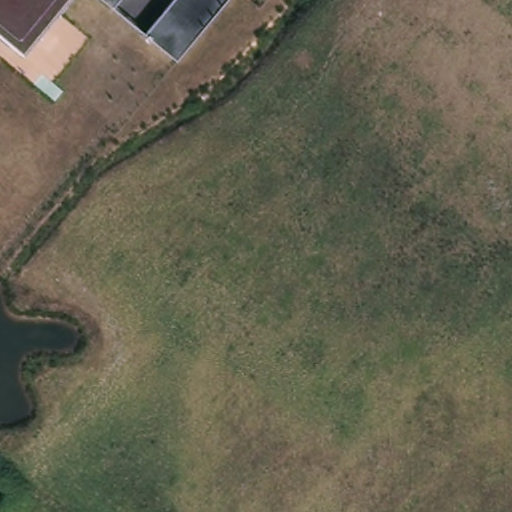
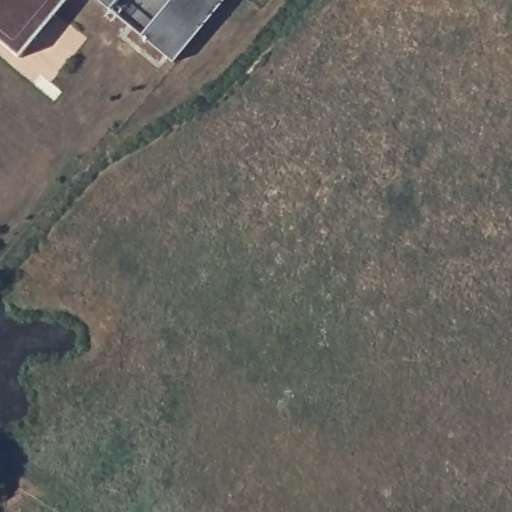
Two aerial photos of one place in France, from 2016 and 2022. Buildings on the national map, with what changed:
unchanged [(21,55),(0,38),(0,0),(68,0),(21,55)]
unchanged [(111,7),(103,0),(117,0),(111,7)]
unchanged [(176,60),(143,36),(171,0),(223,0),(176,60)]

